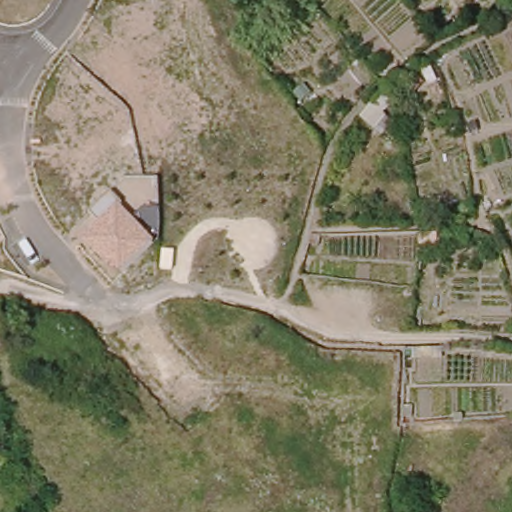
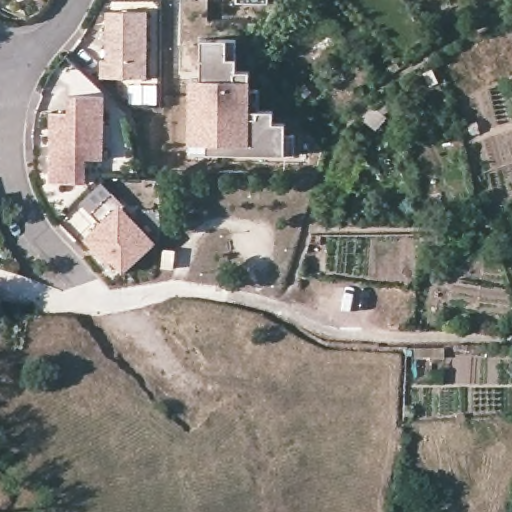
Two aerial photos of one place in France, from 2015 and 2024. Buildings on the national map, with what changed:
new [(233,2),(233,0),(265,0),(265,2),(233,2)]
unchanged [(97,60),(102,60),(103,10),(143,11),(142,77),(97,77),(97,60)]
new [(196,95),(196,72),(197,39),(232,40),(232,71),(246,71),(245,89),(255,89),(255,110),(270,110),(270,122),(282,122),(282,134),(291,134),(291,155),(186,154),(186,95),(196,95)]
new [(85,160),(82,184),(45,178),(52,132),(55,110),(61,110),(73,112),(75,95),(111,100),(104,142),(102,162),(85,160)]
unchanged [(111,261),(107,265),(82,239),(100,222),(92,212),(112,193),(157,242),(122,273),(111,261)]

